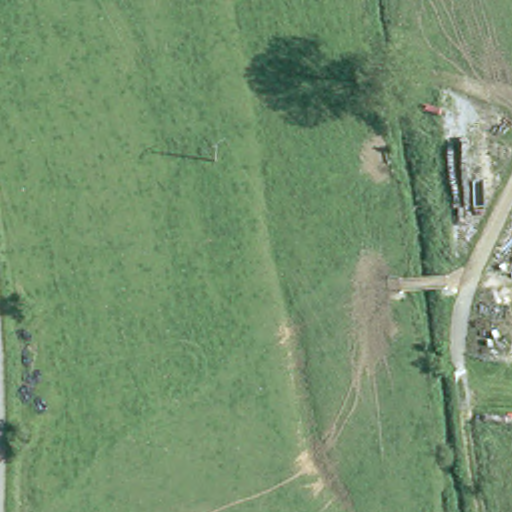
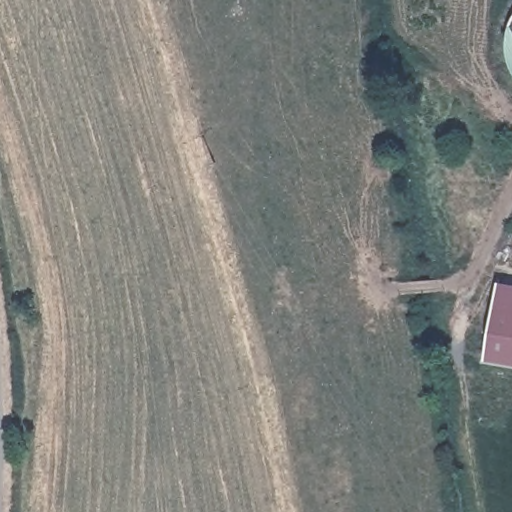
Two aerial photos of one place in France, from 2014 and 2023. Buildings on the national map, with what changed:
new [(512,48),(511,37),(512,26),(512,24),(512,49),(512,48)]
new [(487,360),(500,280),(512,282),(512,365),(487,360)]

